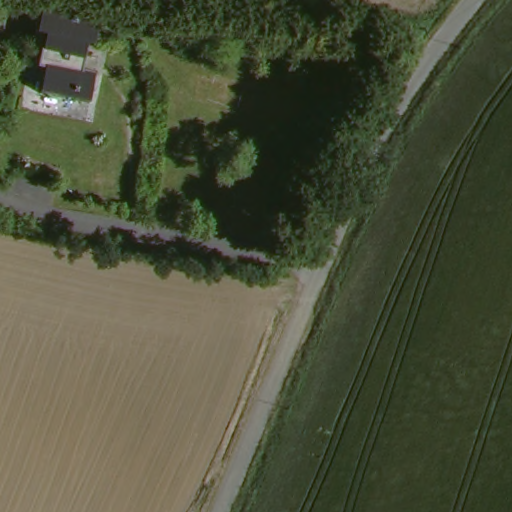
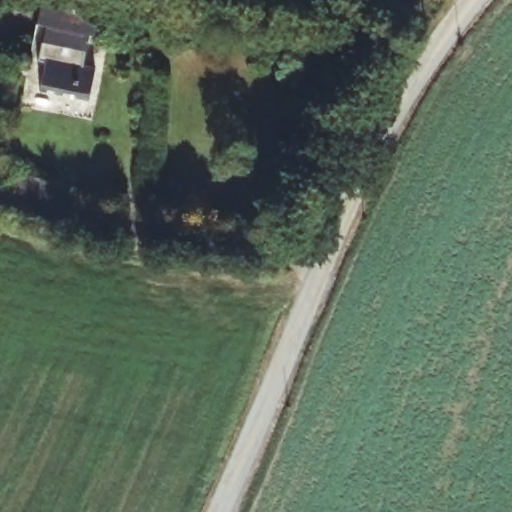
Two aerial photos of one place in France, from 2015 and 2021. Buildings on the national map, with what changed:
unchanged [(39,95),(45,64),(38,62),(42,44),(32,41),(39,2),(99,14),(95,38),(88,36),(82,68),(96,72),(89,104),(39,95)]

